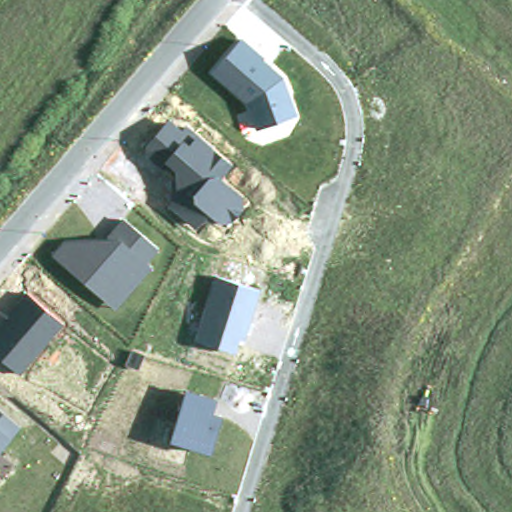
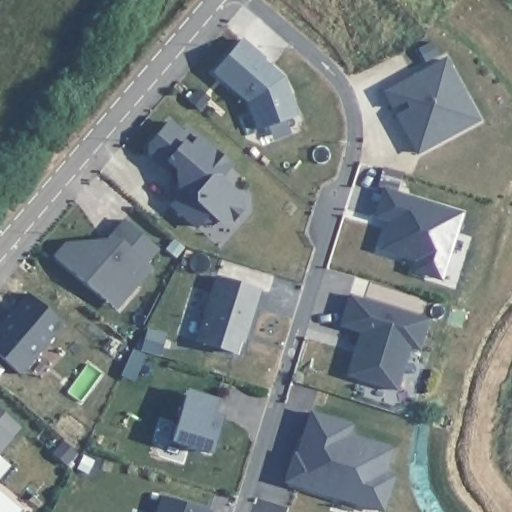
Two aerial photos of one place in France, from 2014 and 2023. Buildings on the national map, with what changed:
unchanged [(240,36),(265,56),(262,60),(282,76),(297,115),(257,129),(248,103),(210,73),(240,36)]
new [(383,91),(445,59),(480,121),(417,154),(383,91)]
unchanged [(184,129),(187,126),(231,163),(220,178),(243,197),(245,207),(232,222),(202,221),(197,228),(167,205),(174,197),(170,172),(148,157),(147,144),(168,118),(184,129)]
new [(379,250),(387,221),(375,217),(382,188),(463,212),(442,281),(412,272),(415,261),(379,250)]
unchanged [(65,239),(103,238),(122,217),(160,249),(147,263),(152,268),(115,310),(51,255),(65,239)]
unchanged [(262,289),(247,339),(240,337),(235,354),(196,340),(217,275),(262,289)]
unchanged [(64,322),(20,373),(0,357),(0,323),(27,291),(64,322)]
new [(340,326),(347,295),(429,318),(419,351),(409,347),(397,390),(347,375),(360,333),(340,326)]
unchanged [(218,398),(214,413),(223,416),(212,455),(169,441),(185,388),(218,398)]
unchanged [(22,428),(0,454),(0,409),(22,428)]
new [(392,447),(385,474),(395,476),(385,512),(383,512),(285,483),(293,455),(297,456),(309,412),(353,424),(350,435),(392,447)]
new [(162,496),(212,511),(211,512),(157,512),(162,496)]

